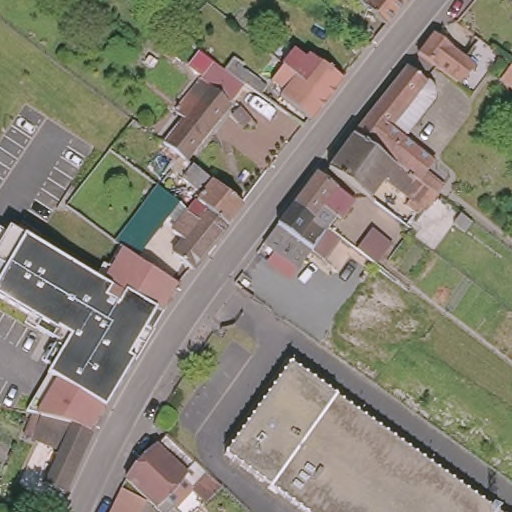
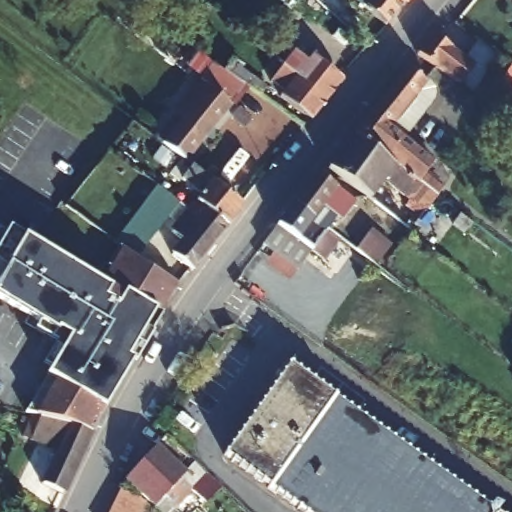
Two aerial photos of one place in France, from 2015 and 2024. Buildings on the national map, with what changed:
unchanged [(386,23),(363,4),(366,0),(400,0),(403,2),(386,23)]
unchanged [(400,0),(405,0),(403,2),(400,0)]
unchanged [(469,54),(484,35),(486,37),(489,39),(475,59),(479,61),(463,80),(423,47),(438,28),(441,30),(469,54)]
unchanged [(310,120),(280,95),(275,101),(262,91),(253,85),(228,65),(239,51),(248,58),(246,61),(271,80),(284,64),(326,99),(310,120)]
unchanged [(326,99),(284,64),(294,51),(307,61),(313,55),(342,79),(326,99)]
unchanged [(395,77),(407,61),(426,76),(428,79),(429,81),(431,85),(432,87),(432,89),(432,91),(431,94),(428,99),(414,116),(403,130),(434,155),(428,163),(448,180),(439,191),(437,190),(353,129),(383,92),(395,77)]
unchanged [(184,119),(176,112),(204,77),(216,62),(244,84),(233,98),(184,160),(164,144),(184,119)]
unchanged [(512,95),(494,83),(510,63),(512,65),(512,95)]
unchanged [(244,127),(233,115),(241,107),(253,119),(244,127)]
unchanged [(328,164),(353,129),(437,190),(423,209),(409,197),(411,193),(384,173),(369,194),(328,164)]
unchanged [(242,206),(226,225),(208,211),(207,210),(196,201),(201,193),(182,177),(191,166),(242,206)]
unchanged [(294,196),(316,167),(322,171),(351,193),(337,211),(324,200),(314,211),(294,196)]
unchanged [(119,206),(123,209),(147,179),(151,174),(180,196),(176,201),(153,231),(141,247),(134,255),(100,230),(119,206)]
unchanged [(341,231),(324,254),(312,245),(299,262),(264,237),(294,196),(314,211),(310,217),(324,228),(329,222),(341,231)]
unchanged [(208,211),(226,225),(191,269),(171,254),(200,218),(207,210),(208,211)]
unchanged [(65,418),(39,412),(25,412),(46,375),(51,368),(43,363),(56,342),(35,330),(40,323),(0,299),(0,230),(6,233),(9,228),(24,236),(96,279),(103,264),(111,268),(123,246),(134,255),(178,286),(161,313),(151,330),(153,332),(135,362),(133,361),(103,409),(84,428),(65,418)]
unchanged [(358,248),(369,231),(390,247),(379,263),(358,248)]
unchanged [(505,512),(306,512),(218,448),(286,354),(505,512)]
unchanged [(65,418),(84,428),(58,489),(36,479),(54,438),(34,433),(39,412),(65,418)]
unchanged [(165,434),(194,462),(154,505),(126,478),(165,434)]
unchanged [(207,503),(193,489),(207,474),(221,487),(207,503)]
unchanged [(139,512),(108,512),(120,487),(146,499),(139,512)]

